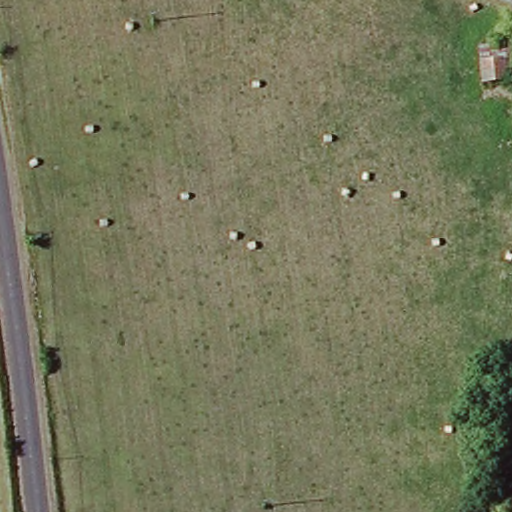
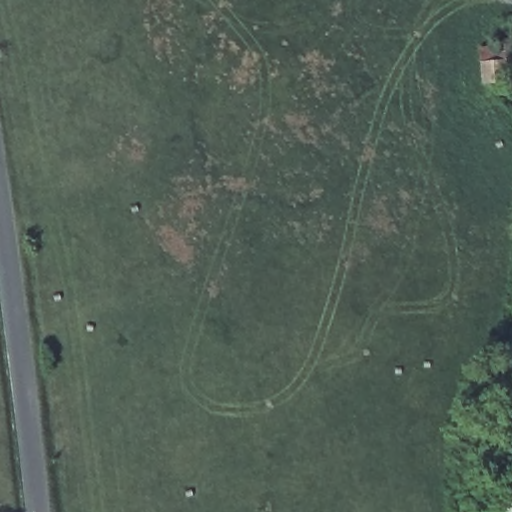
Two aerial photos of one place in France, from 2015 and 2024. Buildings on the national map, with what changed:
unchanged [(511,73),(477,76),(475,46),(508,43),(511,73)]

